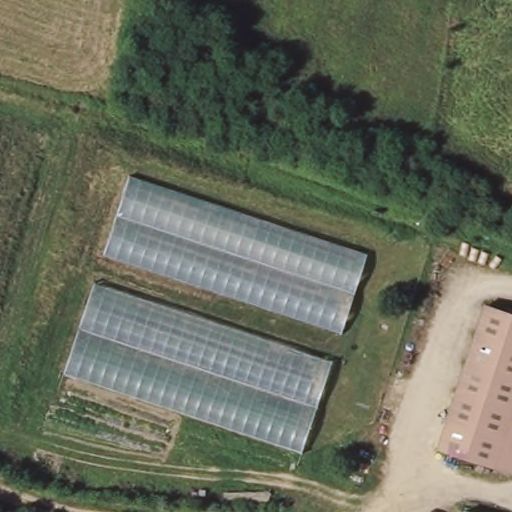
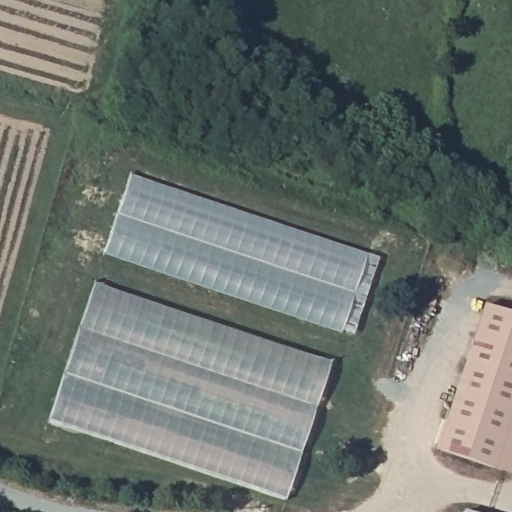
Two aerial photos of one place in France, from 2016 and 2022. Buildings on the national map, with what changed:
unchanged [(129,174),(367,252),(341,333),(103,252),(129,174)]
unchanged [(94,283),(331,362),(302,452),(63,373),(94,283)]
unchanged [(512,314),(512,468),(510,474),(488,467),(498,438),(441,420),(478,303),(512,314)]
new [(286,499),(47,420),(63,373),(302,452),(286,499)]
unchanged [(441,420),(498,438),(488,467),(431,448),(441,420)]
unchanged [(491,512),(463,512),(464,505),(491,512)]

